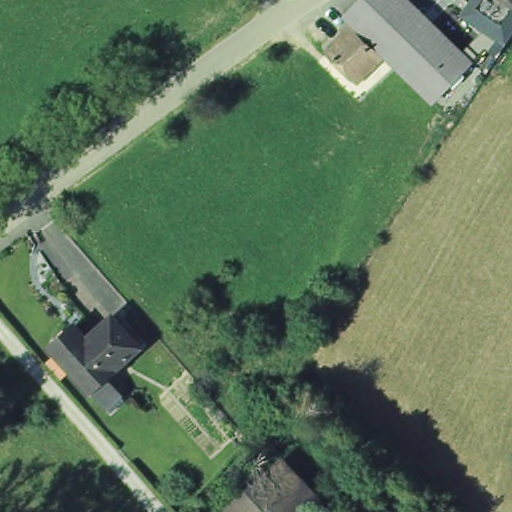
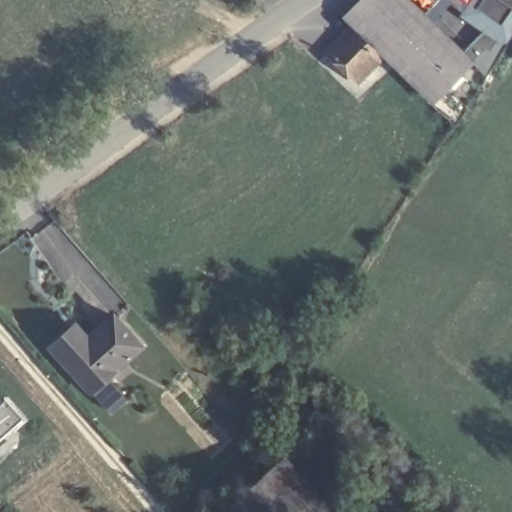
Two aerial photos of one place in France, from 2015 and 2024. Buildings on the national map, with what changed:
unchanged [(361,0),(406,0),(470,63),(433,101),(385,54),(354,24),(345,16),(361,0)]
unchanged [(512,5),(505,0),(512,0),(512,5)]
unchanged [(385,54),(357,82),(326,52),(354,24),(385,54)]
unchanged [(470,57),(485,32),(504,42),(488,69),(470,57)]
unchanged [(57,351),(80,330),(92,343),(119,320),(145,350),(95,394),(57,351)]
new [(5,405),(22,424),(0,444),(0,409),(5,405)]
unchanged [(243,512),(294,466),(325,500),(312,512),(243,512)]

